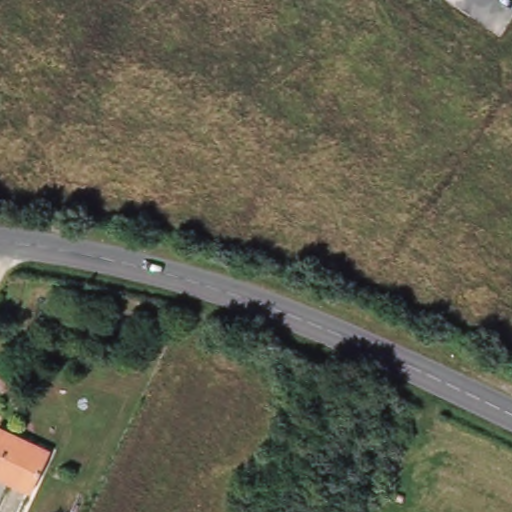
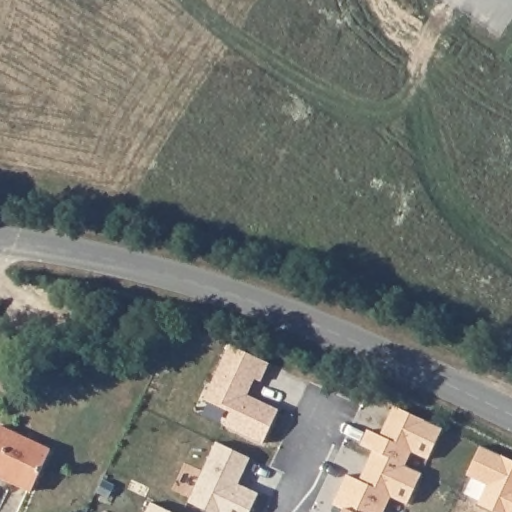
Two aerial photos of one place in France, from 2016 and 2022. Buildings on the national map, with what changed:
new [(271,363),(264,382),(258,379),(250,394),(280,410),(264,445),(223,425),(230,409),(205,399),(229,344),(271,363)]
new [(442,429),(429,460),(412,452),(404,466),(420,473),(407,504),(391,497),(384,510),(342,490),(348,476),(364,484),(368,476),(365,473),(376,452),(361,445),(368,431),(385,439),(389,431),(386,429),(396,408),(442,429)]
unchanged [(31,492),(0,477),(0,426),(50,451),(31,492)]
new [(217,443),(250,458),(242,476),(239,474),(234,483),(259,494),(250,512),(210,512),(189,502),(217,443)]
new [(171,512),(147,512),(151,503),(171,512)]

